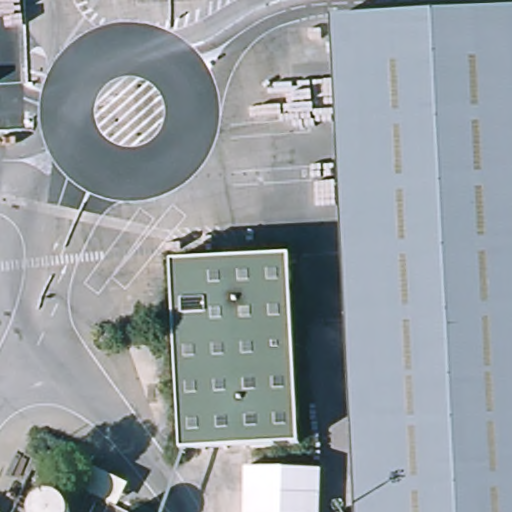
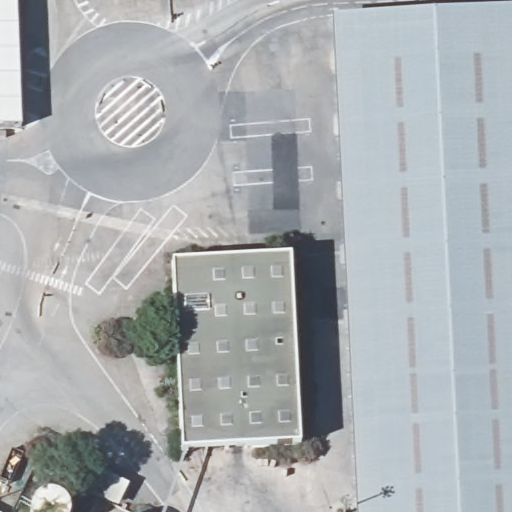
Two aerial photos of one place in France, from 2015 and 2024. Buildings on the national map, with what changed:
new [(0,127),(0,0),(17,0),(22,126),(0,127)]
unchanged [(355,512),(330,17),(512,8),(512,512),(355,512)]
unchanged [(290,252),(300,442),(182,449),(171,260),(290,252)]
demolished [(326,512),(248,512),(249,467),(328,468),(326,512)]

